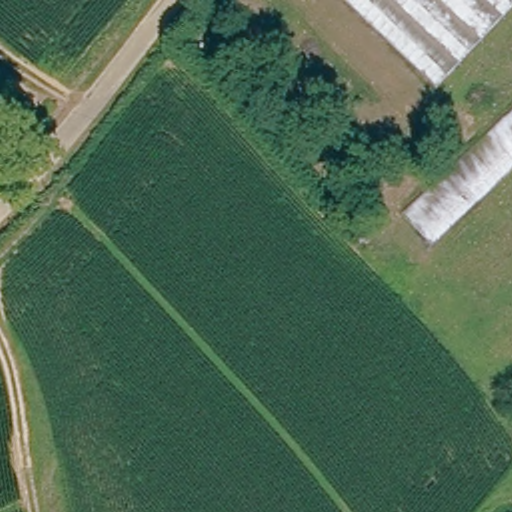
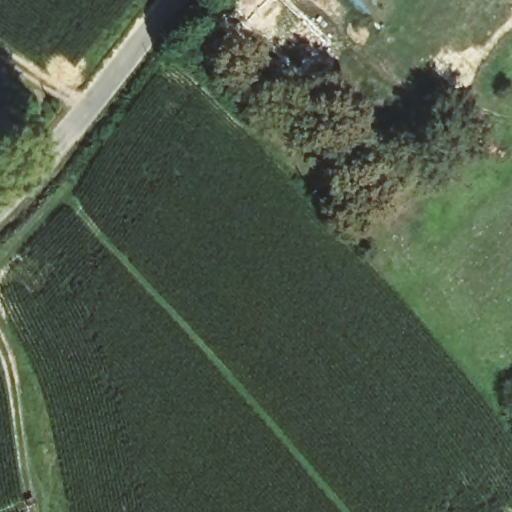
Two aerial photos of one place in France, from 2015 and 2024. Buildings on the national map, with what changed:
demolished [(512,0),(512,10),(439,89),(339,0),(512,0)]
demolished [(405,216),(512,115),(512,179),(436,249),(405,216)]

